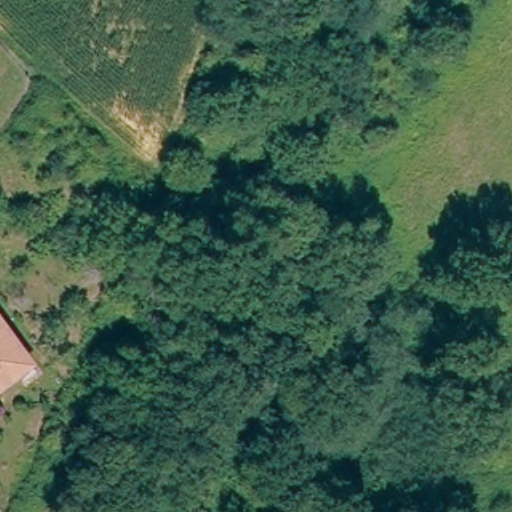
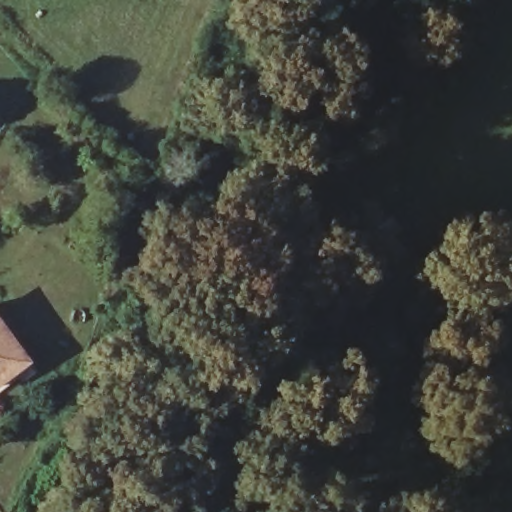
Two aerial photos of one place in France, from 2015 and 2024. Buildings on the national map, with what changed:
unchanged [(15,339),(9,341),(29,368),(0,389),(0,318),(15,339)]

